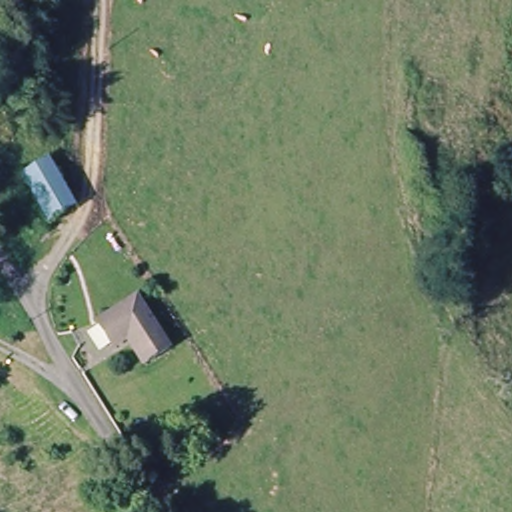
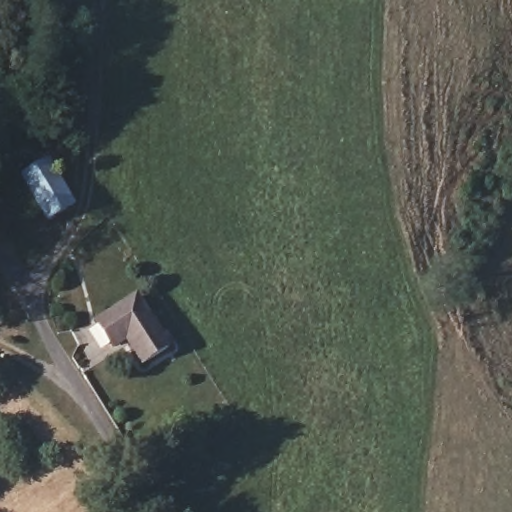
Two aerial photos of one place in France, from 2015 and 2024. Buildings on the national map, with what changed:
unchanged [(48,166),(71,206),(52,220),(27,175),(48,166)]
unchanged [(169,355),(144,370),(127,341),(116,346),(100,322),(139,297),(169,355)]

